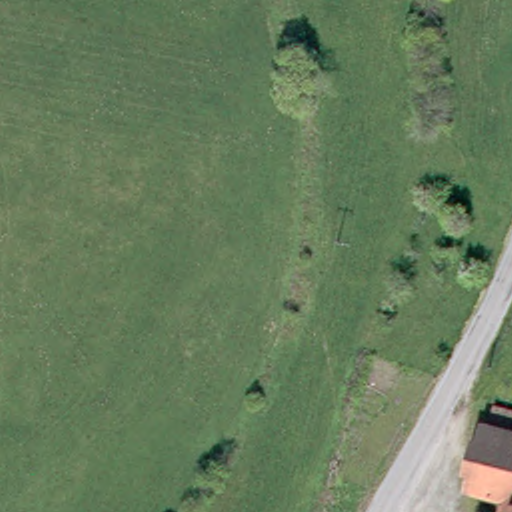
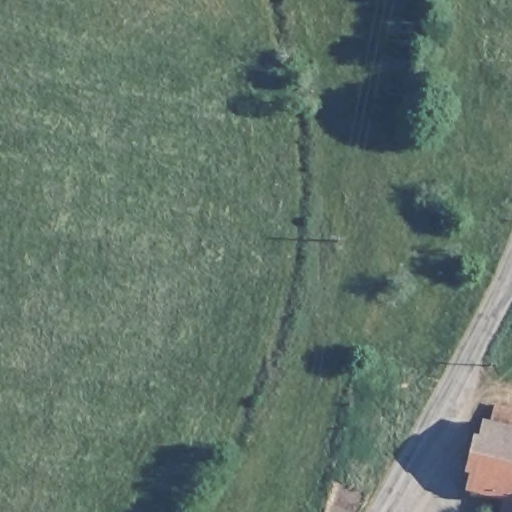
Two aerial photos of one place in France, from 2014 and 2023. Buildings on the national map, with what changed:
unchanged [(477,430),(512,439),(512,512),(495,512),(497,504),(462,495),(477,430)]

